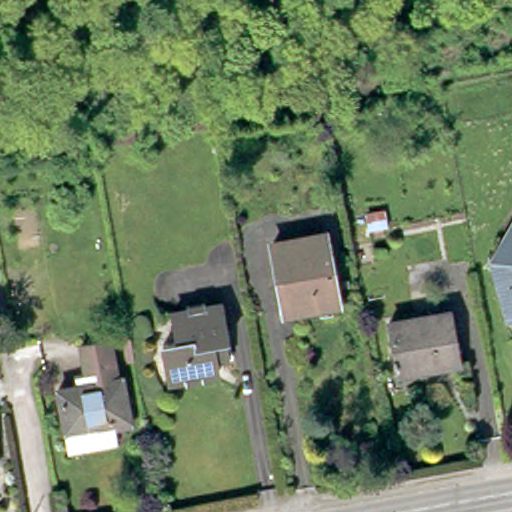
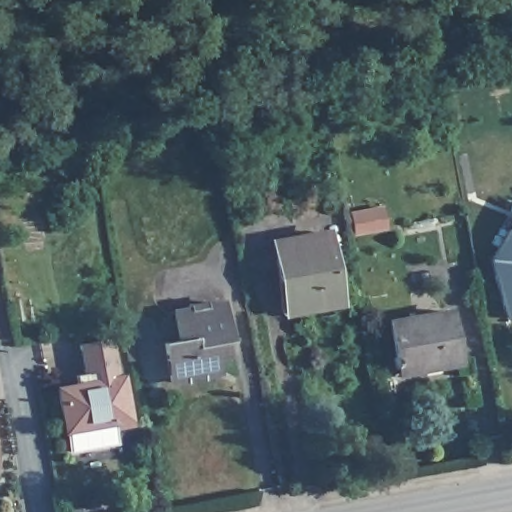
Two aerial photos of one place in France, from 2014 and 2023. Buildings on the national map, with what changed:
unchanged [(368,214),(385,211),(388,228),(371,231),(368,214)]
unchanged [(494,256),(512,224),(512,313),(509,314),(494,256)]
unchanged [(289,313),(284,311),(281,305),(278,276),(280,276),(273,238),(326,229),(339,299),(333,300),(333,305),(289,313)]
unchanged [(181,384),(181,379),(165,382),(158,343),(173,341),(168,312),(183,309),(182,304),(200,301),(201,306),(216,304),(223,342),(226,358),(211,361),(213,373),(198,376),(198,381),(181,384)]
unchanged [(399,376),(389,324),(450,312),(456,342),(459,342),(462,356),(458,356),(460,364),(443,367),(426,371),(399,376)]
unchanged [(116,339),(124,373),(85,381),(78,346),(116,339)]
unchanged [(73,446),(69,426),(62,385),(85,381),(124,373),(133,420),(115,423),(118,438),(73,446)]

